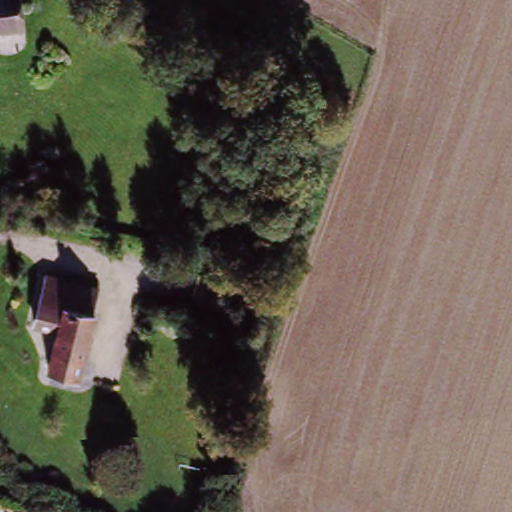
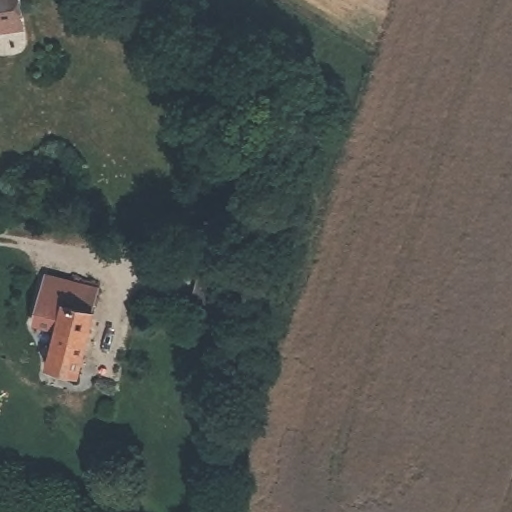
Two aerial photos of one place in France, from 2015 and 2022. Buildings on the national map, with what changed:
unchanged [(0,35),(0,0),(14,0),(20,31),(0,35)]
unchanged [(61,295),(92,302),(73,376),(41,368),(61,295)]

